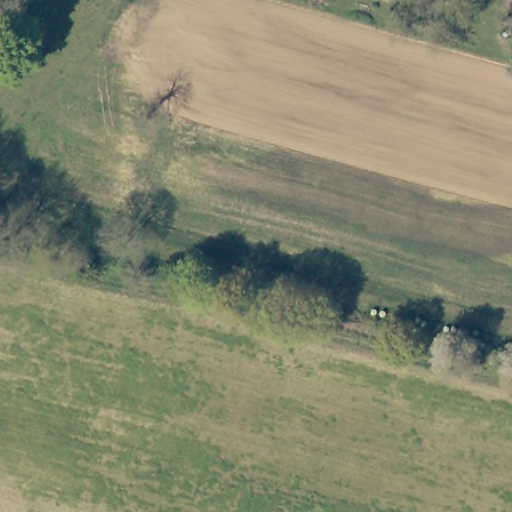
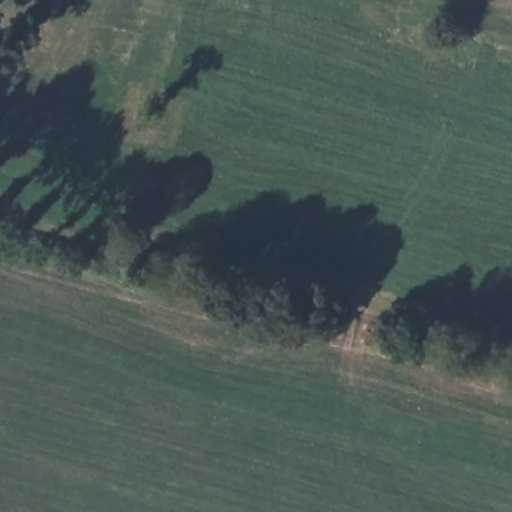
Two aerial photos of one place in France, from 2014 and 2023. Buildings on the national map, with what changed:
[]

